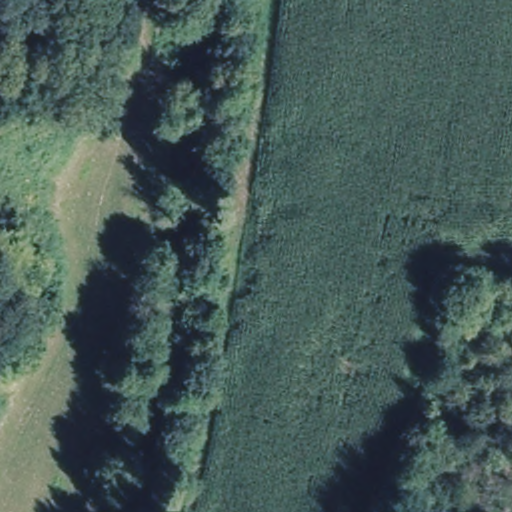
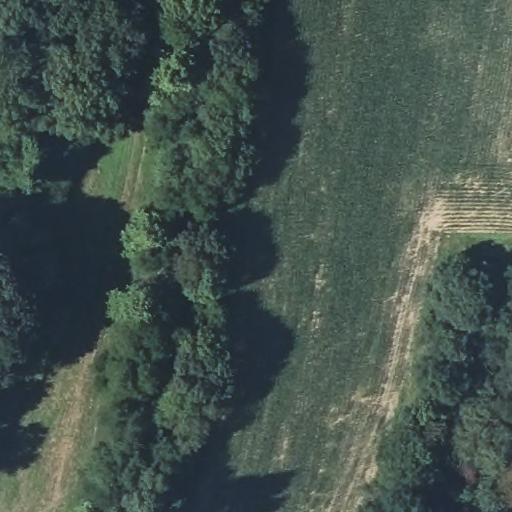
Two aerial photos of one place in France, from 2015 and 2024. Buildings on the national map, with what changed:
[]

